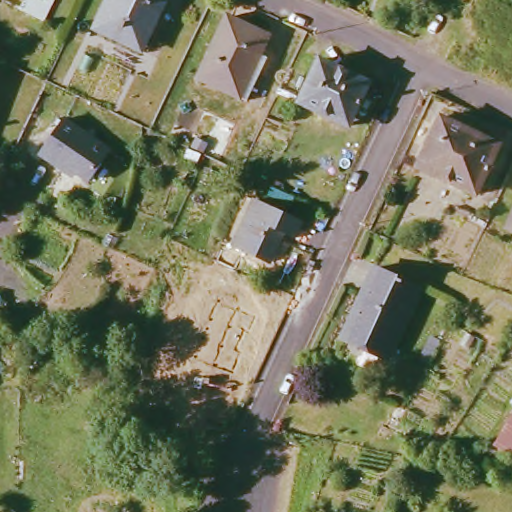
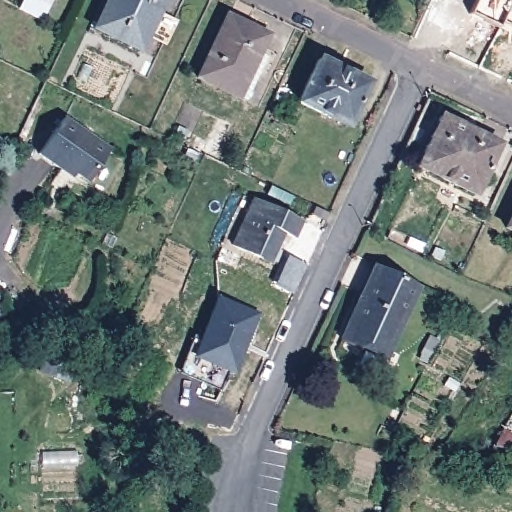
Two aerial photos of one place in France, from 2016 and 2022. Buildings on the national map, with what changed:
unchanged [(29,19),(6,8),(9,0),(39,0),(29,19)]
unchanged [(100,0),(157,0),(135,45),(89,22),(100,0)]
unchanged [(193,75),(221,16),(264,36),(254,56),(261,59),(242,99),(193,75)]
unchanged [(369,82),(349,124),(298,100),(319,59),(369,82)]
unchanged [(419,166),(441,117),(499,144),(476,194),(419,166)]
unchanged [(61,169),(39,154),(62,119),(109,149),(88,181),(75,172),(73,176),(61,169)]
unchanged [(269,263),(231,245),(251,200),(299,223),(291,239),(281,234),(269,263)]
unchanged [(512,207),(512,231),(503,226),(512,207)]
unchanged [(384,358),(338,337),(371,266),(418,288),(384,358)]
new [(258,313),(233,375),(206,364),(201,383),(176,373),(189,335),(198,338),(214,297),(258,313)]
unchanged [(512,404),(512,458),(489,441),(512,404)]

